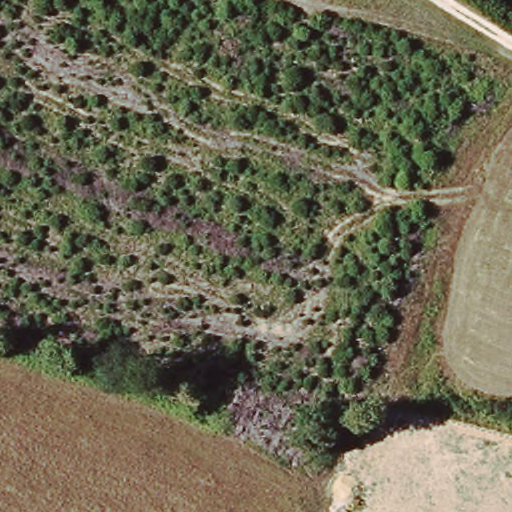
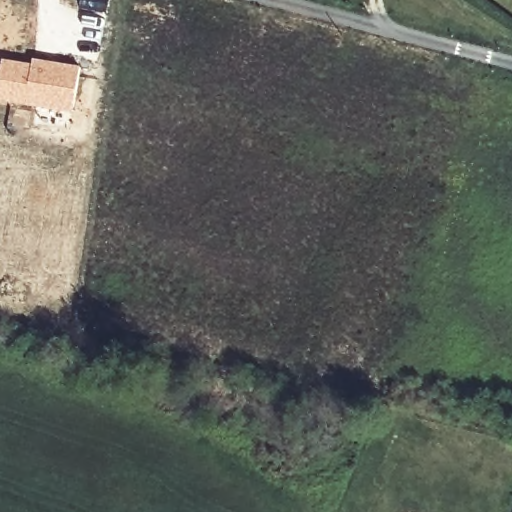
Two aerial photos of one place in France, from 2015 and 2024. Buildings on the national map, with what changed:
new [(32,65),(33,59),(81,67),(75,112),(0,100),(0,79),(3,60),(32,65)]

